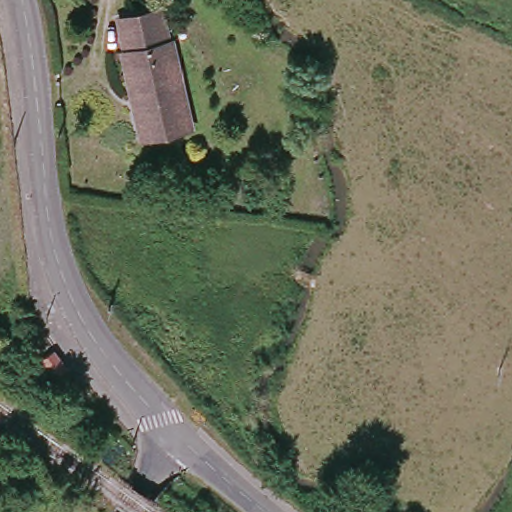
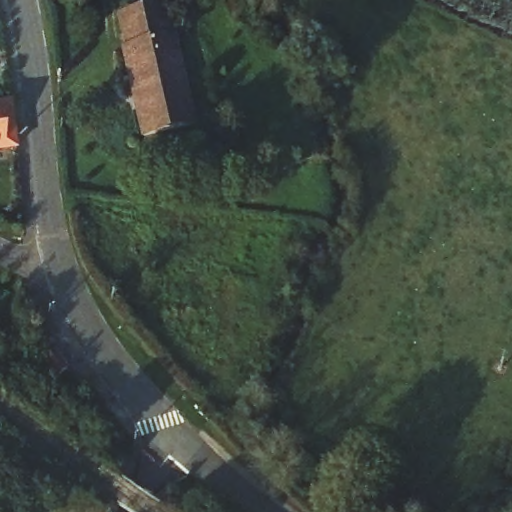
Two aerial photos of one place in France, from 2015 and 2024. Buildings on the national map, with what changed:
unchanged [(165,35),(170,35),(185,122),(136,131),(119,47),(123,45),(117,13),(159,5),(165,35)]
new [(10,100),(15,146),(0,148),(0,101),(10,100)]

